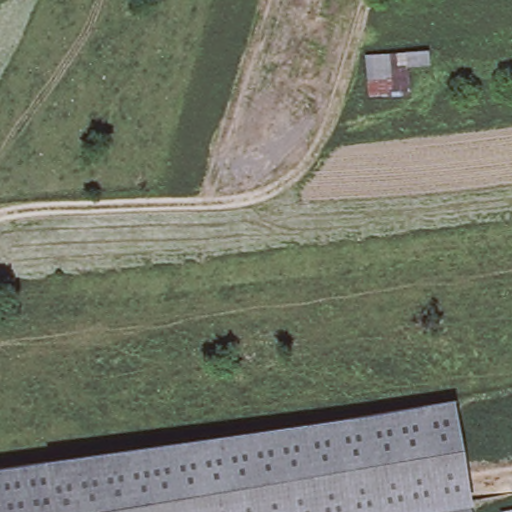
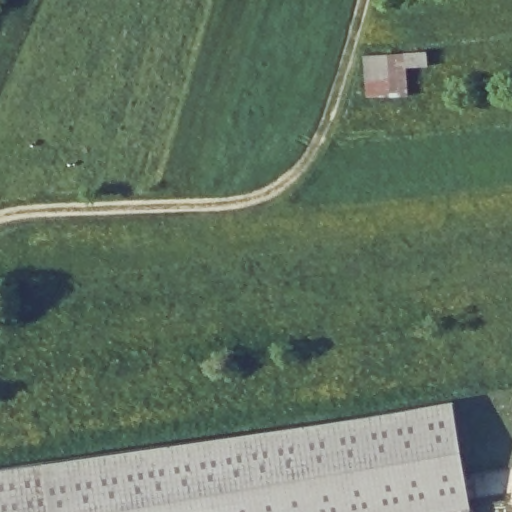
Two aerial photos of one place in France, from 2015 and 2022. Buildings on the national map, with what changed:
unchanged [(428,51),(429,68),(408,69),(407,97),(367,98),(365,55),(428,51)]
unchanged [(341,418),(452,399),(468,490),(351,510),(352,512),(0,512),(0,468),(341,418)]
unchanged [(471,512),(414,512),(469,503),(471,512)]

